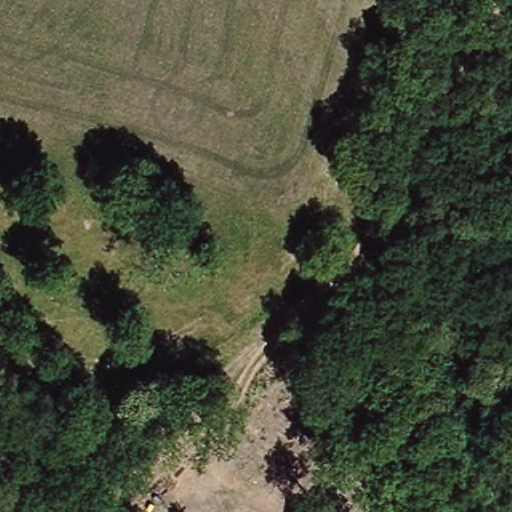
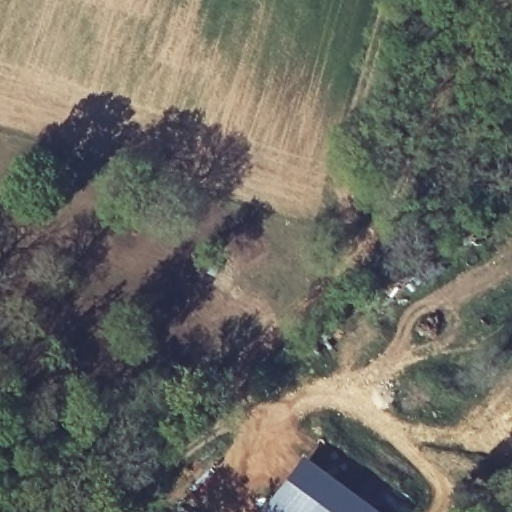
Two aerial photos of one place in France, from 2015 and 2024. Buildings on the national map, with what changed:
new [(384,512),(262,512),(305,453),(384,512)]

